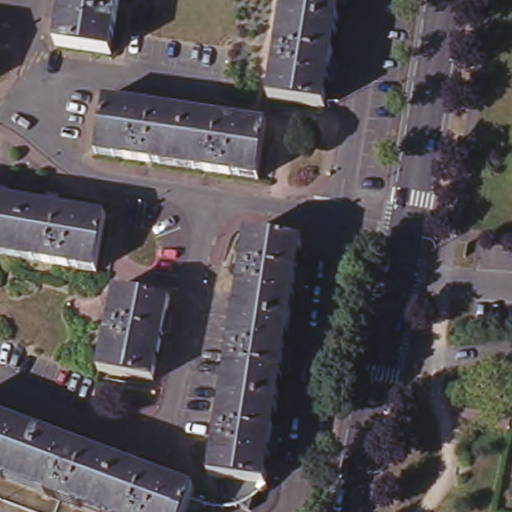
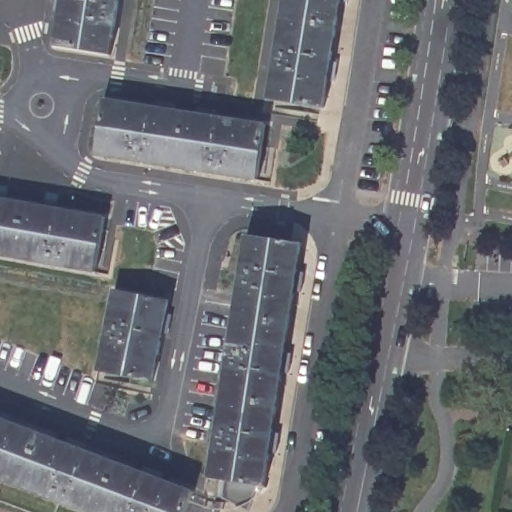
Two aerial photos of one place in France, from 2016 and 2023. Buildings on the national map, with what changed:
unchanged [(62,16),(65,0),(116,0),(108,50),(59,42),(58,42),(62,16)]
unchanged [(266,95),(282,0),(338,0),(321,104),(266,95)]
unchanged [(92,148),(91,147),(103,92),(118,95),(170,105),(194,109),(264,121),(252,177),(126,153),(109,151),(92,148)]
unchanged [(93,268),(0,252),(0,196),(102,215),(93,268)]
unchanged [(299,239),(294,271),(301,272),(298,293),(291,292),(282,345),(289,347),(286,368),(279,367),(270,427),(277,427),(273,448),(267,448),(261,481),(206,472),(245,231),(271,234),(299,239)]
unchanged [(170,298),(148,376),(94,361),(117,283),(170,298)]
unchanged [(183,512),(81,512),(0,481),(0,419),(190,491),(183,512)]

